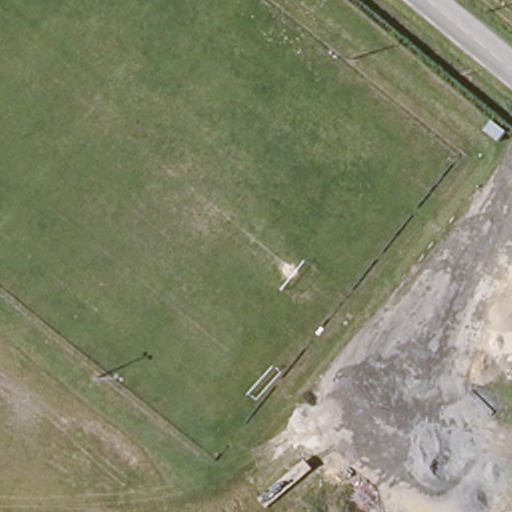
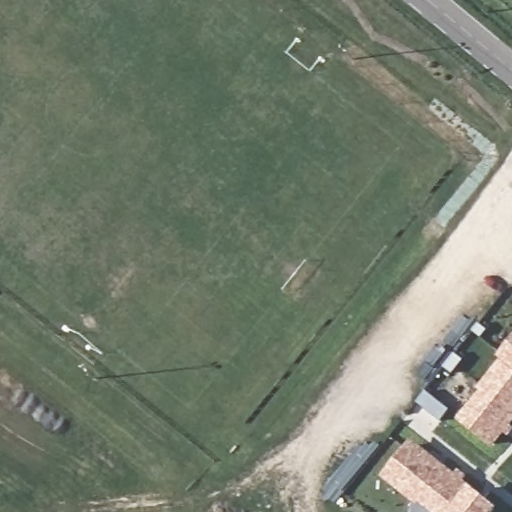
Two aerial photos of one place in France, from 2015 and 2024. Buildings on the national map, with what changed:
new [(486,451),(452,418),(512,338),(512,418),(486,451)]
new [(416,512),(374,480),(408,444),(495,512),(416,512)]

